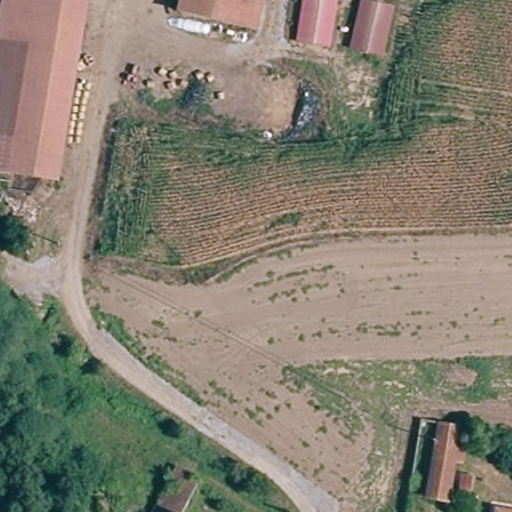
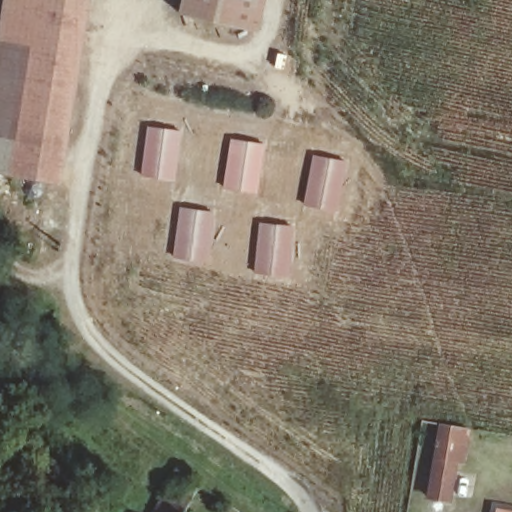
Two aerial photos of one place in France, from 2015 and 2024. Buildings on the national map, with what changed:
unchanged [(0,171),(0,19),(4,0),(89,0),(56,182),(0,171)]
unchanged [(180,0),(263,0),(255,33),(241,30),(177,15),(180,0)]
new [(147,126),(182,130),(175,181),(140,176),(147,126)]
new [(229,136),(265,143),(256,193),(221,188),(229,136)]
new [(312,153),(348,160),(337,212),(302,205),(312,153)]
new [(178,205),(215,211),(208,263),(171,258),(178,205)]
new [(258,221),(294,225),(289,277),(253,273),(258,221)]
unchanged [(434,477),(438,458),(441,439),(462,442),(459,462),(456,481),(434,477)]
unchanged [(182,469),(205,485),(191,512),(160,512),(182,469)]
unchanged [(502,507),(512,509),(512,512),(501,512),(502,507)]

